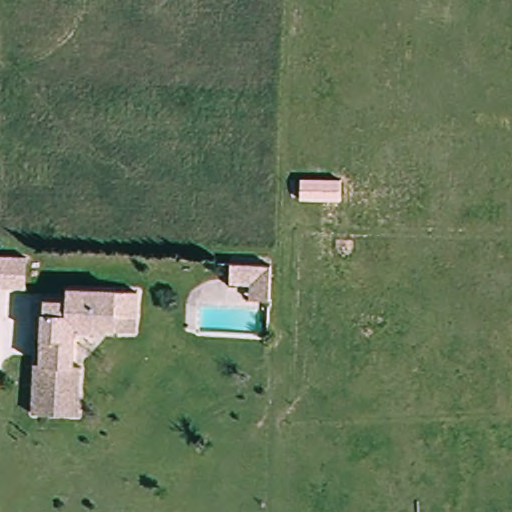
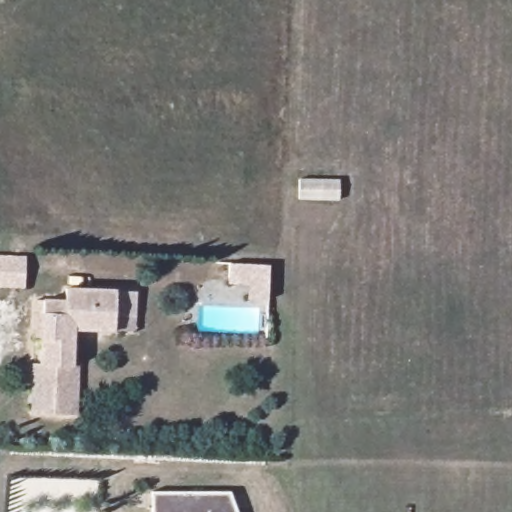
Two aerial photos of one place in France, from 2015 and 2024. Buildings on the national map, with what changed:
unchanged [(301,180),(343,181),(341,200),(301,201),(301,180)]
unchanged [(26,285),(0,284),(0,254),(28,255),(26,285)]
unchanged [(270,264),(268,299),(249,298),(249,283),(229,282),(230,262),(270,264)]
unchanged [(80,383),(79,395),(78,415),(36,413),(38,381),(39,362),(45,362),(47,327),(40,327),(42,300),(64,300),(65,288),(133,292),(132,317),(131,332),(111,331),(76,329),(74,364),(81,364),(80,383)]
new [(229,491),(236,512),(150,512),(150,492),(229,491)]

